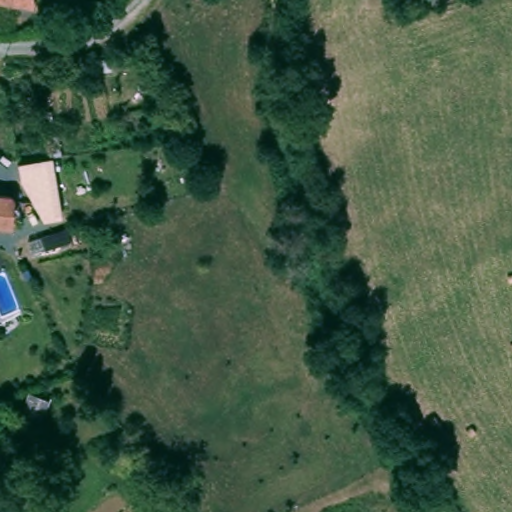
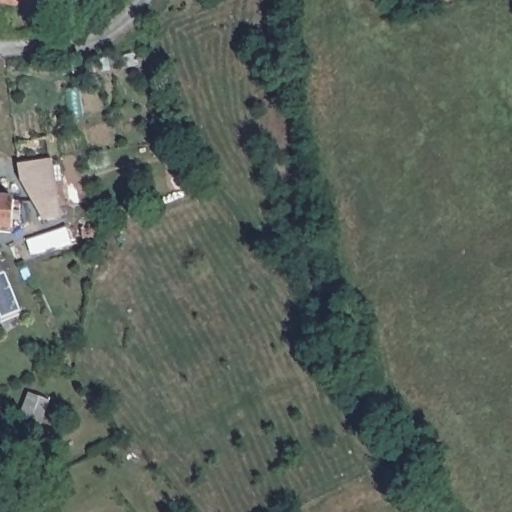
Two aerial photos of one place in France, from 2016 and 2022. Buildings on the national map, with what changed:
unchanged [(0,4),(0,0),(30,0),(28,8),(0,4)]
unchanged [(28,12),(25,37),(8,38),(11,12),(28,12)]
unchanged [(10,230),(0,229),(0,194),(13,196),(10,230)]
unchanged [(95,221),(99,234),(84,237),(83,236),(81,225),(95,221)]

